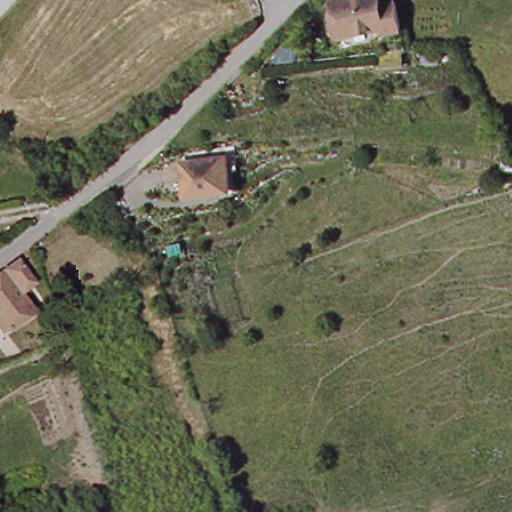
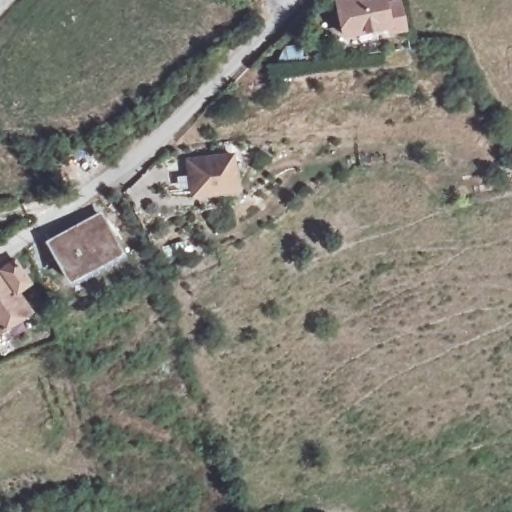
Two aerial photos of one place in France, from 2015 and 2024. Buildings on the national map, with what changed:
unchanged [(403,44),(387,48),(386,42),(340,53),(332,20),(378,9),(381,21),(396,18),(403,44)]
unchanged [(235,194),(191,199),(188,165),(231,160),(235,194)]
new [(99,210),(122,252),(65,283),(42,240),(99,210)]
unchanged [(36,283),(24,291),(38,311),(4,332),(0,326),(0,275),(20,261),(36,283)]

